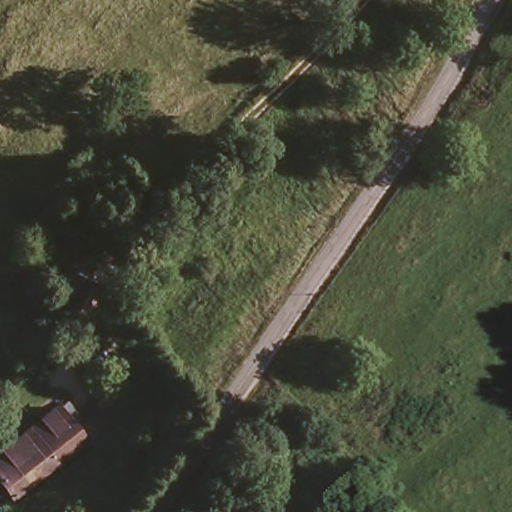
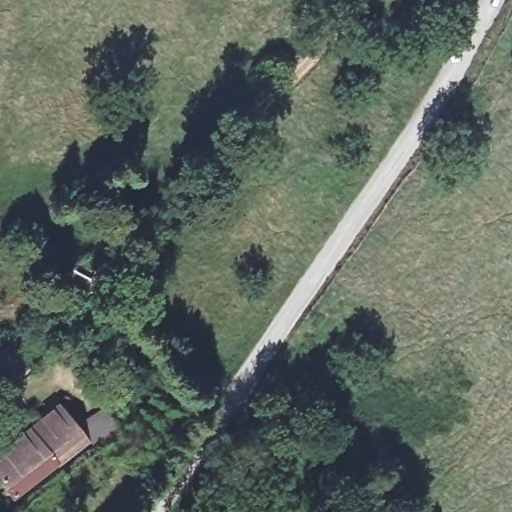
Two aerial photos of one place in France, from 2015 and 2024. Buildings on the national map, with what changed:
unchanged [(0,353),(15,374),(0,383),(0,353)]
unchanged [(0,447),(53,402),(65,416),(85,439),(15,496),(0,481),(0,447)]

